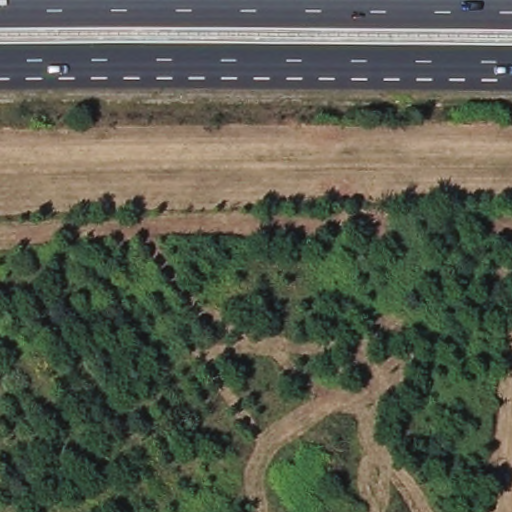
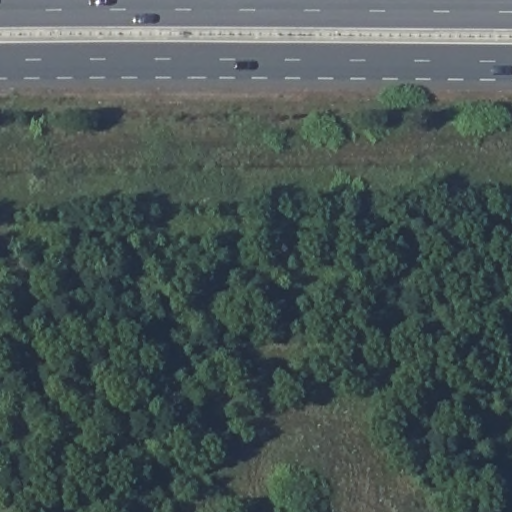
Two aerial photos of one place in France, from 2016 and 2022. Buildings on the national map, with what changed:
[]

